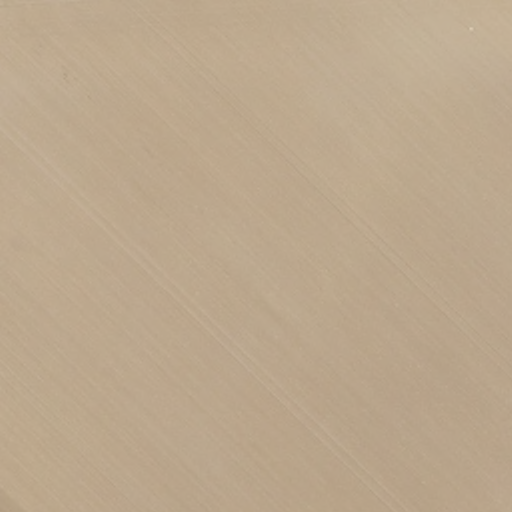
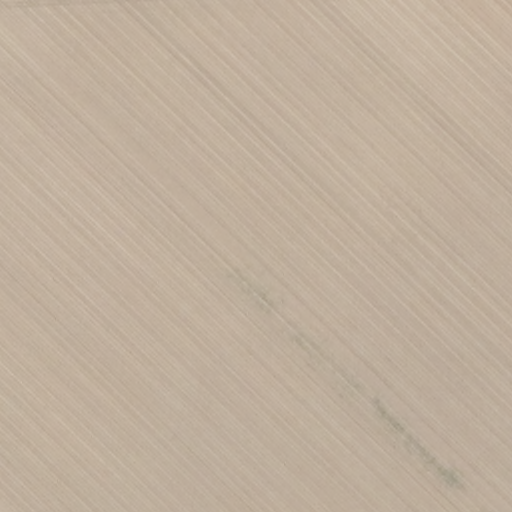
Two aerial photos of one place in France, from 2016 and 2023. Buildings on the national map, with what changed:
[]

